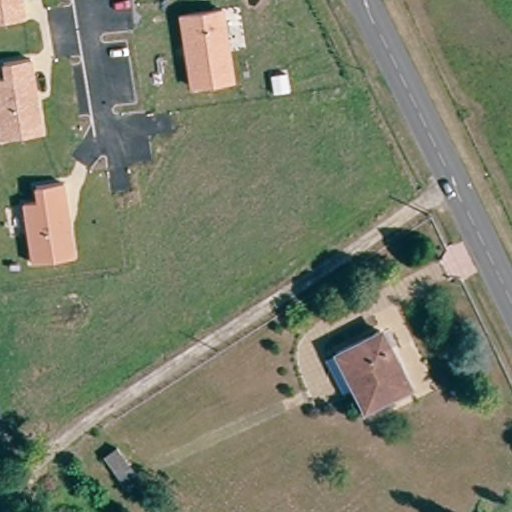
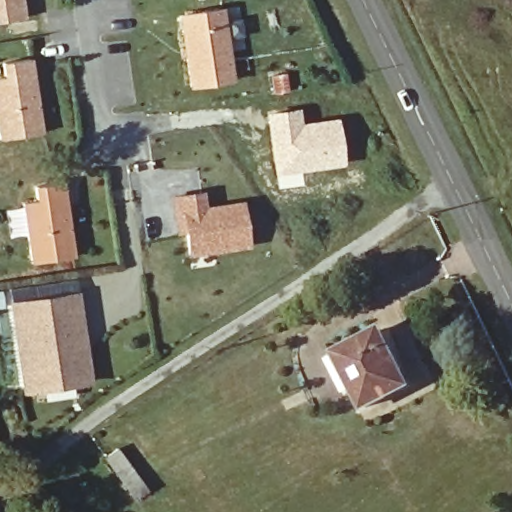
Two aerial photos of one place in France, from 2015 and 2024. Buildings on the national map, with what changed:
unchanged [(0,22),(0,0),(23,0),(26,17),(0,22)]
unchanged [(191,87),(180,13),(225,6),(235,80),(191,87)]
unchanged [(0,139),(0,136),(0,78),(4,77),(2,62),(31,57),(44,131),(0,139)]
new [(298,107),(301,122),(336,116),(343,165),(298,172),(282,177),(282,186),(278,186),(266,112),(298,107)]
unchanged [(34,263),(24,202),(36,200),(35,187),(64,181),(75,255),(34,263)]
new [(204,191),(207,206),(243,200),(250,247),(188,256),(184,233),(176,234),(172,197),(204,191)]
new [(77,277),(93,384),(23,395),(8,290),(77,277)]
unchanged [(392,333),(398,347),(386,353),(402,386),(381,396),(383,401),(364,410),(336,351),(380,330),(392,333)]
unchanged [(133,486),(123,493),(111,475),(121,469),(133,486)]

